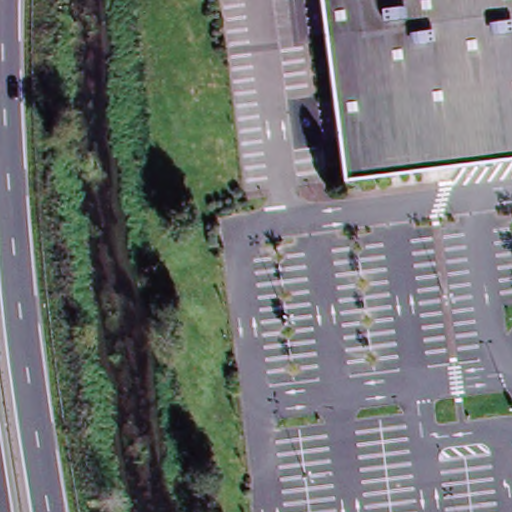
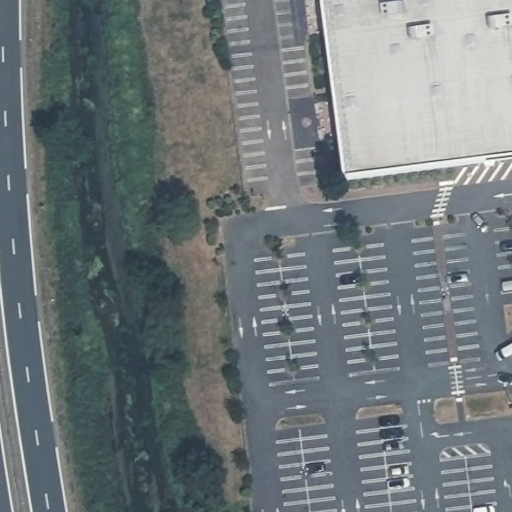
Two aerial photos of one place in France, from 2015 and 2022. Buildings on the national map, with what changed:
unchanged [(368,177),(342,180),(340,180),(338,166),(334,135),(317,0),(512,0),(512,158),(368,177)]

